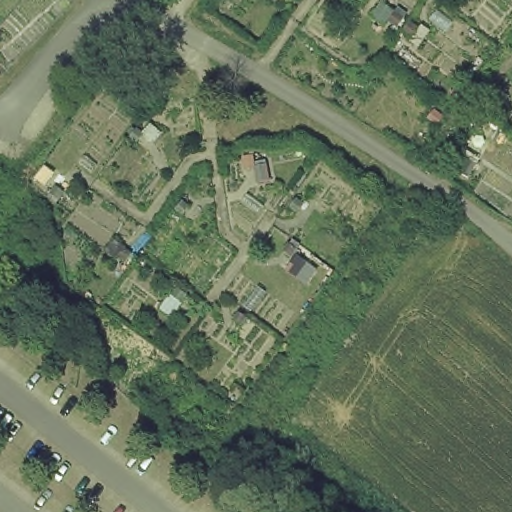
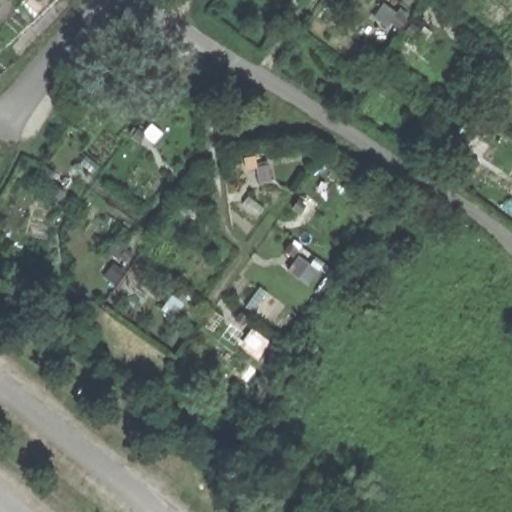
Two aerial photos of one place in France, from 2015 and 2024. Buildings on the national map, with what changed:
unchanged [(78,183),(61,203),(52,198),(60,186),(49,181),(56,169),(78,183)]

